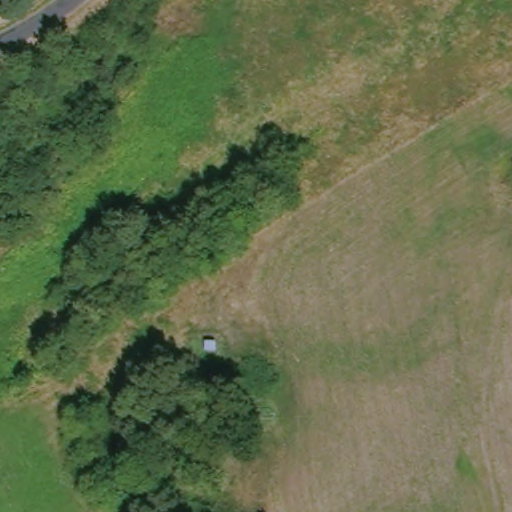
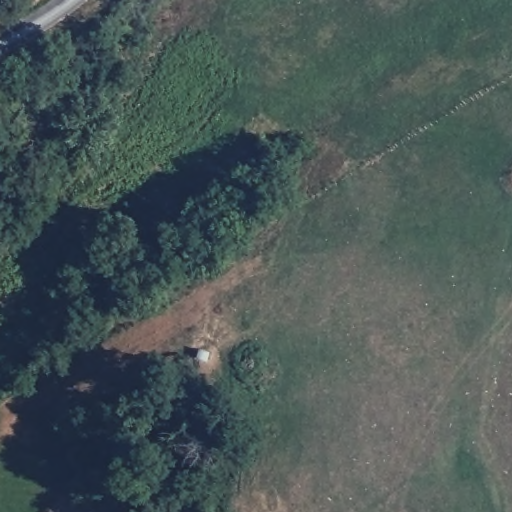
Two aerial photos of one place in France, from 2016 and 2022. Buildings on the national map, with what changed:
[]

